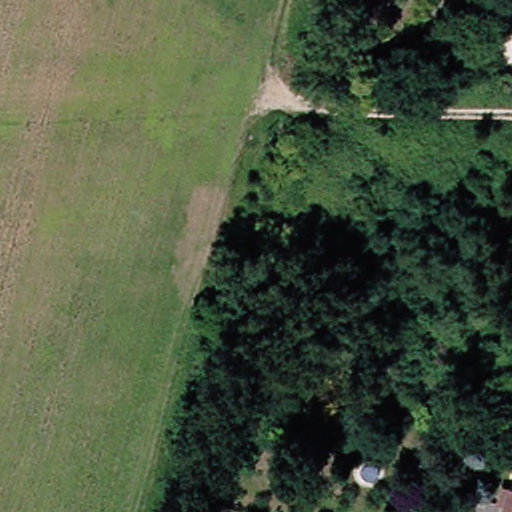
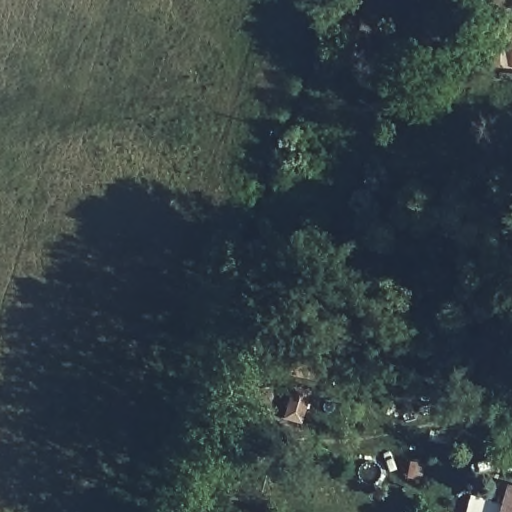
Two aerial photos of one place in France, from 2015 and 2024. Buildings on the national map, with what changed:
unchanged [(477,499),(501,505),(505,486),(512,488),(512,512),(474,512),(477,499)]

